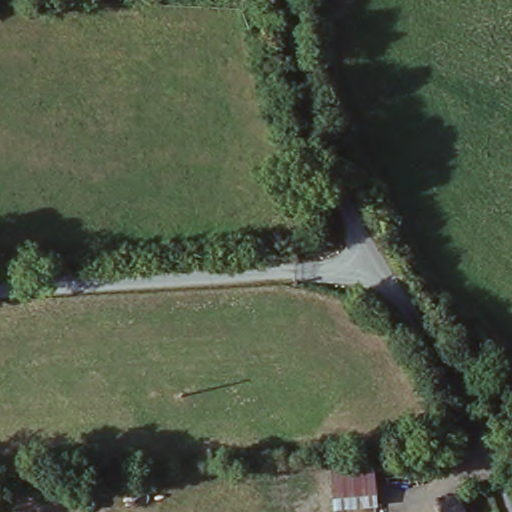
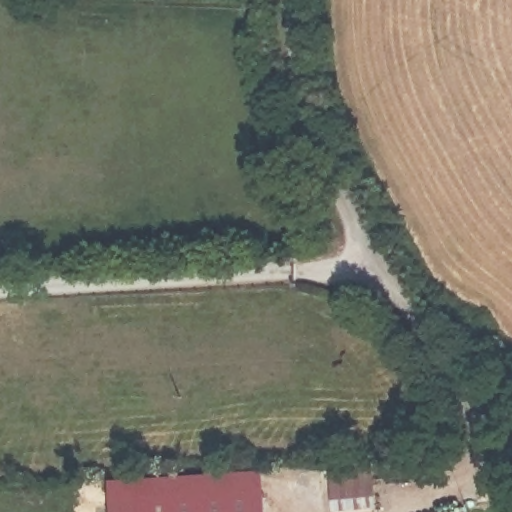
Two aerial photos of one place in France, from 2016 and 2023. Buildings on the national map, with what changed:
unchanged [(332,512),(330,468),(375,467),(378,512),(332,512)]
new [(265,512),(139,512),(136,486),(262,478),(265,512)]

